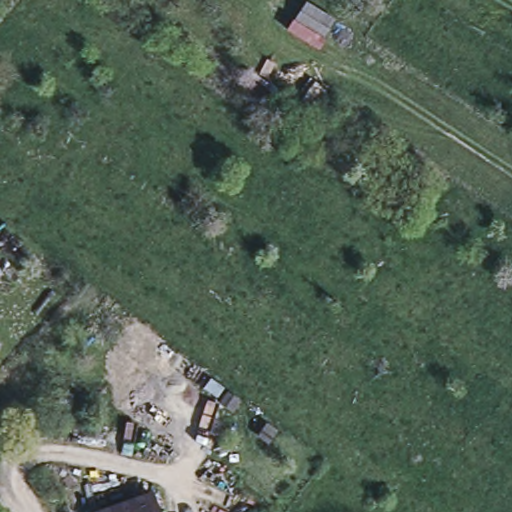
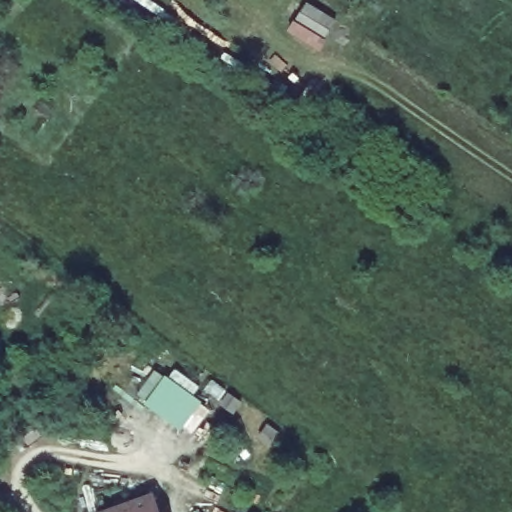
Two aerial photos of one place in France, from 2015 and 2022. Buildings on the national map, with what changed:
unchanged [(336,20),(325,38),(297,20),(308,2),(336,20)]
new [(163,376),(201,403),(181,432),(142,405),(163,376)]
unchanged [(51,413),(60,403),(66,396),(80,408),(65,425),(51,413)]
unchanged [(159,512),(107,512),(153,495),(159,512)]

